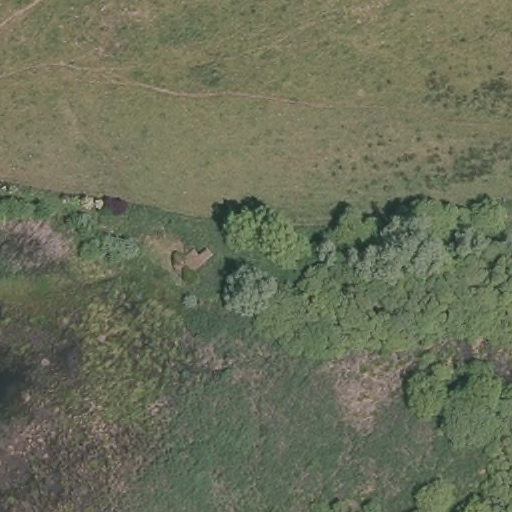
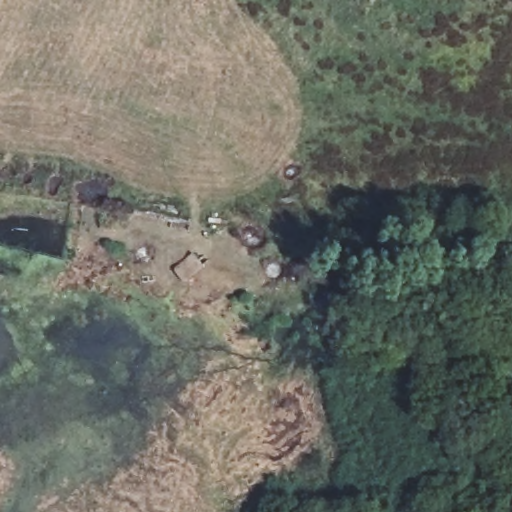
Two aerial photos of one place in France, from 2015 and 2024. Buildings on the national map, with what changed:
unchanged [(173,264),(194,246),(207,261),(183,279),(173,264)]

